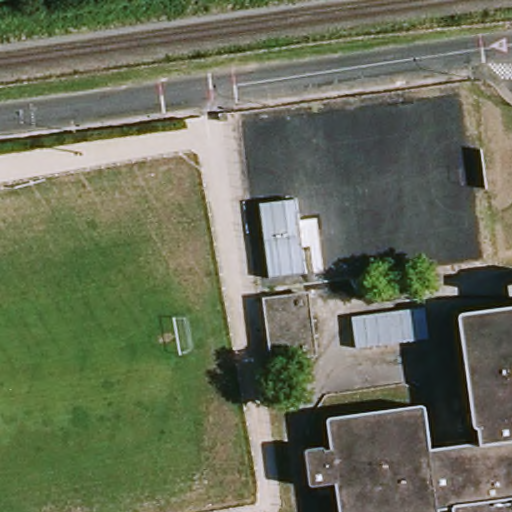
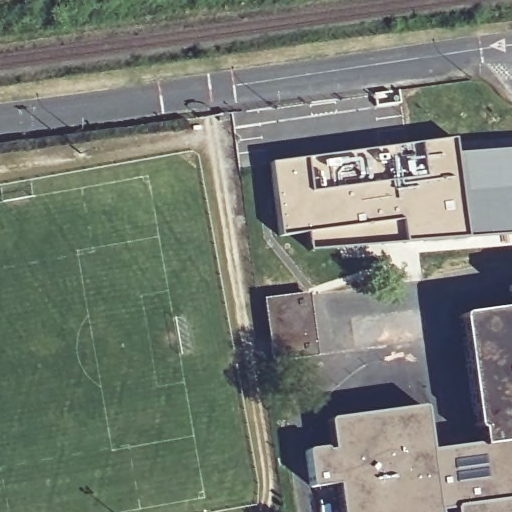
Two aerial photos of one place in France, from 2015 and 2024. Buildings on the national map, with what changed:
new [(305,231),(278,235),(270,164),(452,139),(455,154),(512,150),(512,234),(308,251),(305,231)]
unchanged [(506,291),(512,290),(512,299),(507,300),(506,291)]
unchanged [(266,300),(308,294),(317,354),(274,359),(266,300)]
unchanged [(307,492),(303,455),(323,453),(323,455),(330,454),(325,425),(419,412),(425,457),(477,449),(475,431),(472,432),(457,320),(512,312),(512,512),(337,512),(334,489),(307,492)]

